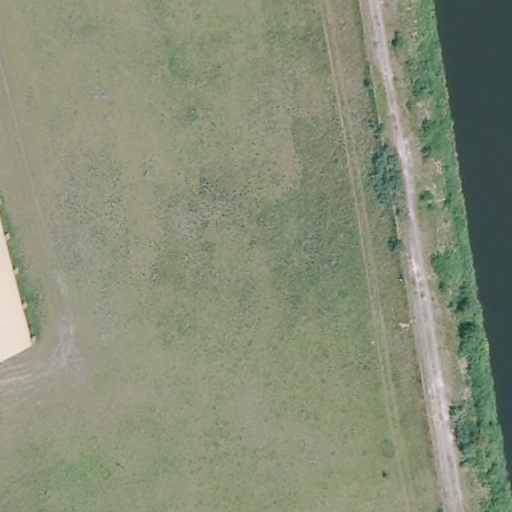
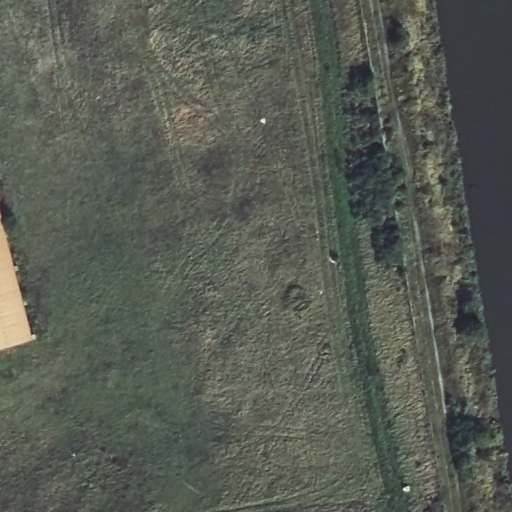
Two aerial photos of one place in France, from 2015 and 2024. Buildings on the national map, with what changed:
unchanged [(0,350),(0,244),(23,344),(0,350)]

